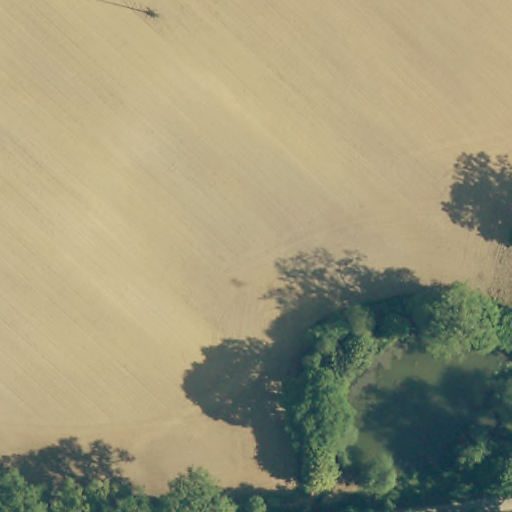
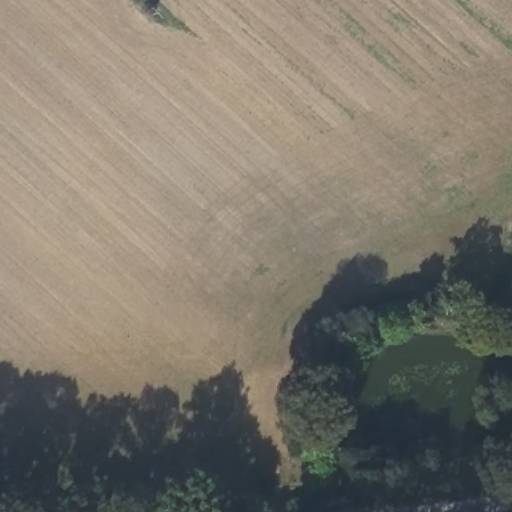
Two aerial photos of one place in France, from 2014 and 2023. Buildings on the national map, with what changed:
[]

